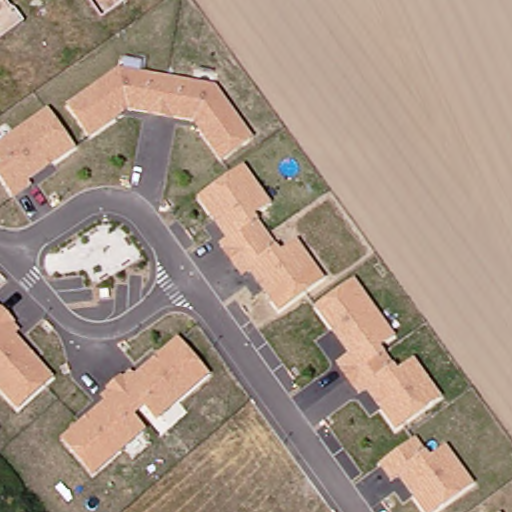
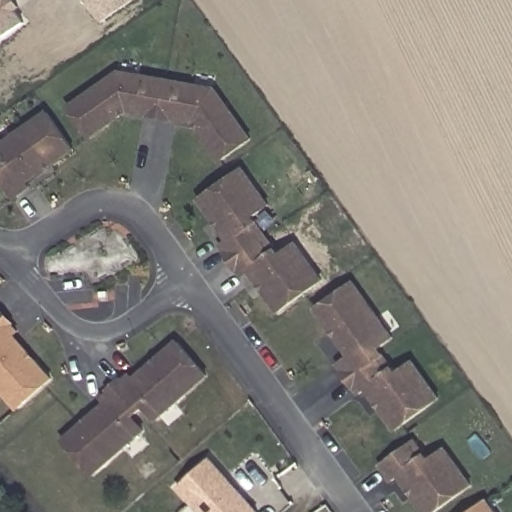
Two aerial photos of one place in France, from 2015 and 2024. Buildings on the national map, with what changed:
unchanged [(0,41),(0,0),(6,0),(24,24),(0,41)]
unchanged [(87,0),(131,0),(102,20),(87,0)]
unchanged [(127,111),(89,139),(68,110),(117,72),(165,79),(160,115),(127,111)]
unchanged [(212,86),(249,135),(220,157),(192,120),(160,115),(165,79),(212,86)]
unchanged [(74,146),(27,181),(31,185),(16,197),(0,176),(0,168),(3,165),(0,161),(0,145),(47,110),(74,146)]
unchanged [(215,234),(222,229),(199,197),(242,165),(267,201),(252,213),(266,232),(232,257),(215,234)]
unchanged [(278,306),(256,275),(249,280),(232,257),(266,232),(280,251),(296,238),(322,274),(278,306)]
unchanged [(349,379),(338,364),(350,355),(316,310),(352,282),(392,336),(378,347),(382,353),(349,379)]
unchanged [(0,318),(0,315),(2,317),(0,318)]
unchanged [(10,334),(49,376),(16,407),(0,390),(0,318),(2,317),(14,330),(10,334)]
unchanged [(132,378),(136,382),(177,343),(208,376),(159,422),(146,409),(140,414),(118,390),(132,378)]
unchanged [(365,389),(360,393),(349,379),(382,353),(397,372),(412,360),(439,395),(397,428),(365,389)]
unchanged [(67,446),(109,407),(105,403),(118,390),(140,414),(134,420),(147,433),(97,479),(67,446)]
unchanged [(396,473),(390,478),(378,464),(412,438),(426,457),(442,445),(468,480),(428,512),(426,512),(396,473)]
new [(261,511),(259,512),(198,512),(176,487),(210,456),(261,511)]

